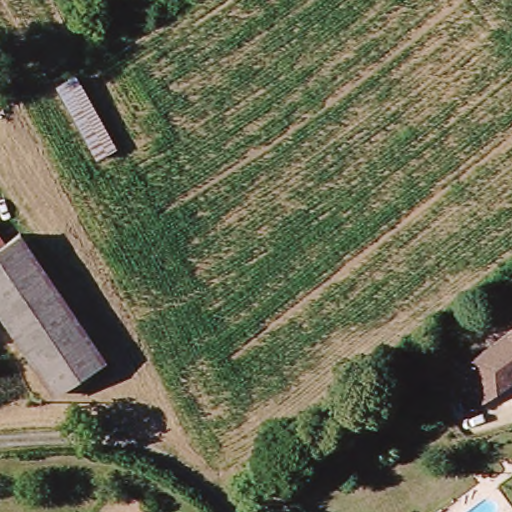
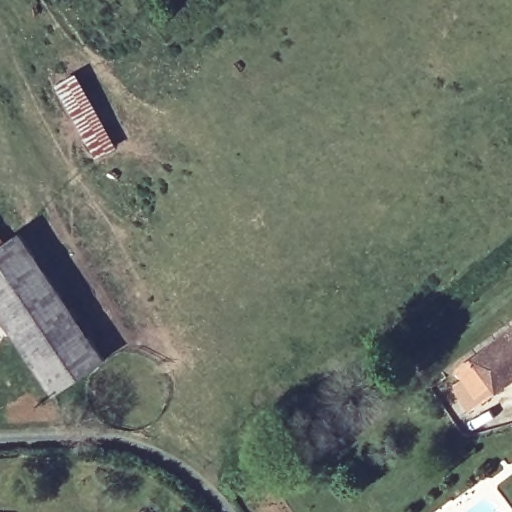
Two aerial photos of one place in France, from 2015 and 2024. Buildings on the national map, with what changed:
unchanged [(115,148),(95,159),(55,87),(75,77),(115,148)]
unchanged [(9,239),(98,369),(72,385),(0,244),(9,239)]
unchanged [(0,336),(0,244),(72,385),(44,400),(0,336)]
unchanged [(466,416),(447,392),(463,380),(454,369),(512,326),(512,381),(466,416)]

